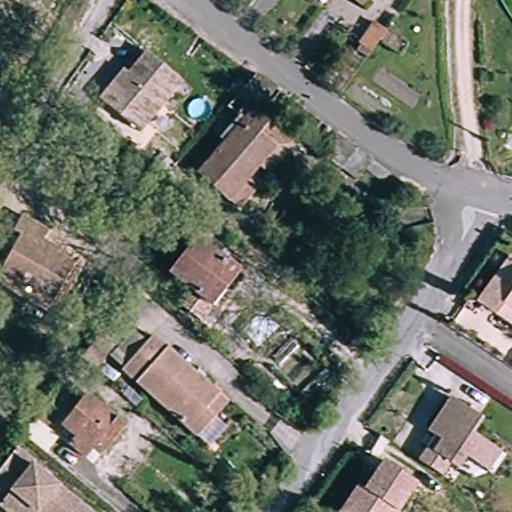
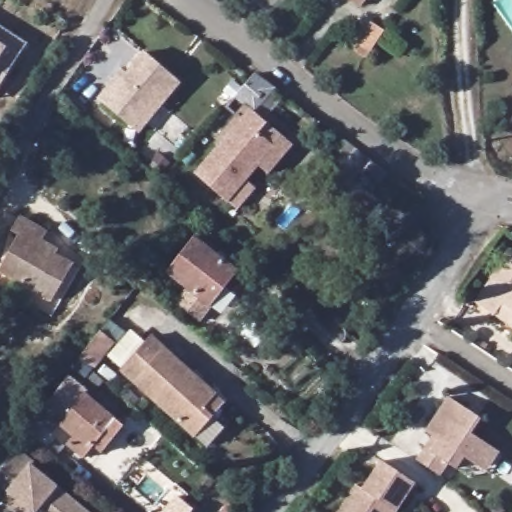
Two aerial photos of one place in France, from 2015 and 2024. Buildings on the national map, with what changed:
unchanged [(356,0),(362,0),(359,4),(356,0)]
unchanged [(395,33),(380,53),(367,45),(382,24),(395,33)]
new [(0,91),(0,29),(30,49),(0,91)]
unchanged [(116,95),(146,55),(183,81),(143,136),(100,105),(111,90),(116,95)]
unchanged [(269,123),(254,110),(239,101),(259,74),(261,71),(294,96),(269,123)]
unchanged [(261,131),(276,146),(231,194),(201,167),(254,110),(269,123),(261,131)]
unchanged [(326,128),(389,172),(379,185),(366,175),(361,180),(313,145),(326,128)]
unchanged [(0,274),(0,265),(16,238),(9,234),(18,219),(43,233),(41,236),(65,249),(59,260),(71,267),(49,303),(0,274)]
unchanged [(204,322),(181,304),(188,290),(171,277),(198,242),(243,271),(204,322)]
unchanged [(501,308),(497,311),(481,298),(512,258),(512,316),(501,308)]
unchanged [(118,340),(96,373),(81,361),(104,328),(118,340)]
unchanged [(201,433),(124,373),(151,337),(228,398),(201,433)]
unchanged [(471,459),(462,472),(452,465),(446,473),(427,460),(439,442),(427,432),(454,396),(490,420),(479,436),(507,454),(512,458),(512,464),(499,480),(491,474),(471,459)]
unchanged [(100,459),(85,445),(89,437),(79,429),(101,398),(141,427),(128,445),(119,454),(110,447),(100,459)]
unchanged [(65,430),(54,420),(64,405),(78,417),(65,430)]
unchanged [(0,455),(13,438),(29,450),(28,453),(96,512),(45,512),(33,501),(24,512),(16,512),(0,499),(0,455)]
unchanged [(359,489),(364,493),(385,464),(417,486),(398,512),(340,512),(359,489)]
unchanged [(45,512),(24,512),(33,501),(45,512)]

